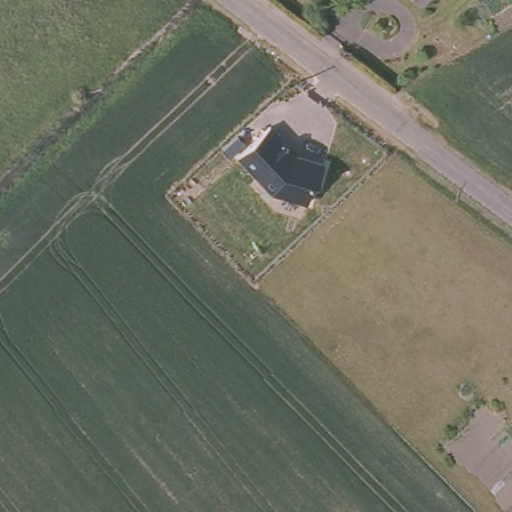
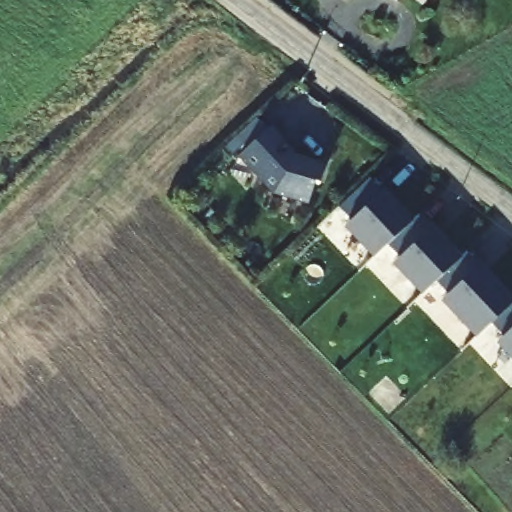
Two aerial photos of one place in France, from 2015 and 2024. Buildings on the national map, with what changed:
unchanged [(426,7),(415,0),(432,0),(426,7)]
unchanged [(296,152),(325,160),(318,186),(315,185),(310,206),(272,192),(240,159),(270,125),(296,152)]
new [(410,221),(373,256),(345,227),(352,220),(339,207),(370,178),(410,221)]
new [(418,215),(459,257),(421,293),(392,263),(400,256),(387,242),(418,215)]
new [(512,299),(512,302),(476,336),(441,300),(448,293),(435,280),(466,250),(512,299)]
new [(501,337),(489,325),(512,302),(512,362),(495,343),(501,337)]

